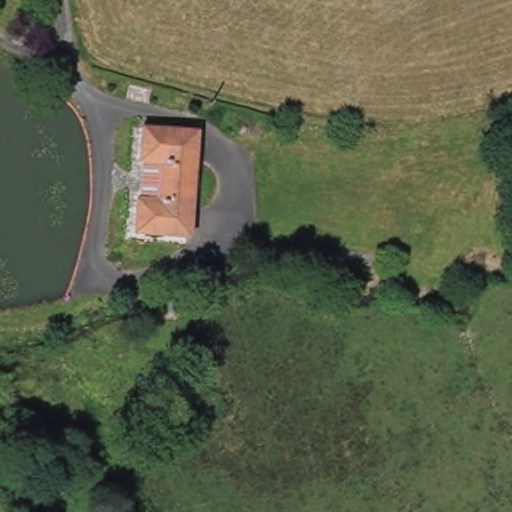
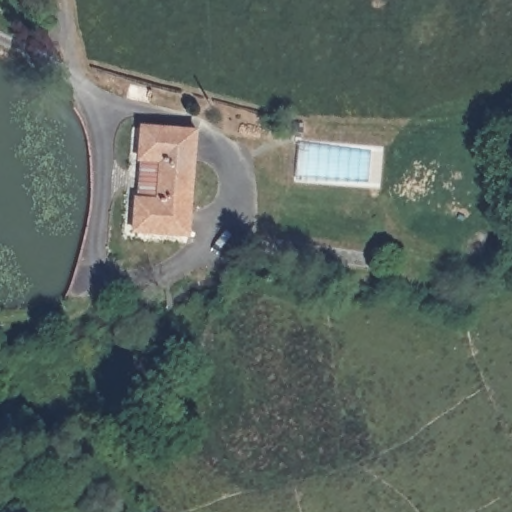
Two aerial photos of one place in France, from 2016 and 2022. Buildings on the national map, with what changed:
unchanged [(137,199),(157,201),(162,163),(140,161),(142,128),(196,133),(188,235),(134,232),(137,199)]

